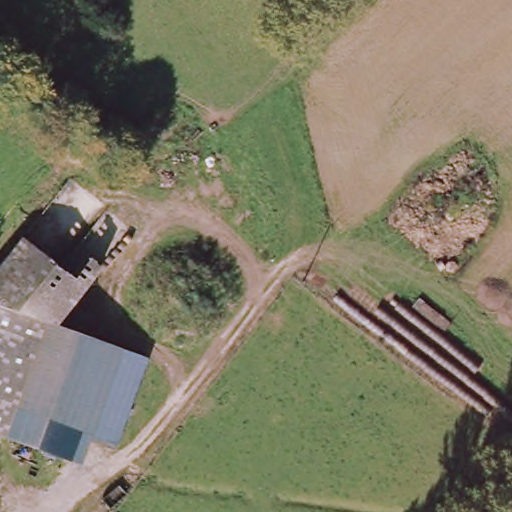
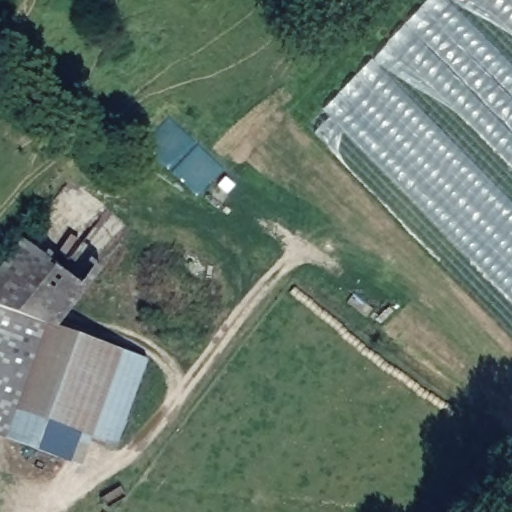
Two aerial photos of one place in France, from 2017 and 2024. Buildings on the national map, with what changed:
new [(428,0),(512,0),(512,336),(309,125),(428,0)]
unchanged [(88,289),(57,326),(146,362),(116,449),(90,443),(84,469),(0,439),(0,274),(25,243),(88,289)]

